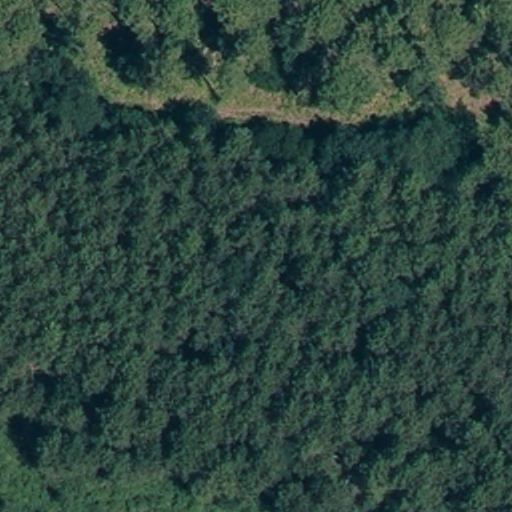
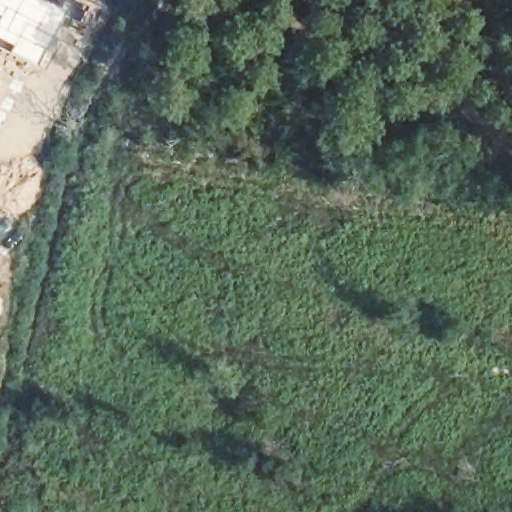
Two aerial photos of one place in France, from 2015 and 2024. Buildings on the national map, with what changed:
new [(36,65),(10,52),(14,46),(0,39),(0,0),(46,0),(64,9),(36,65)]

